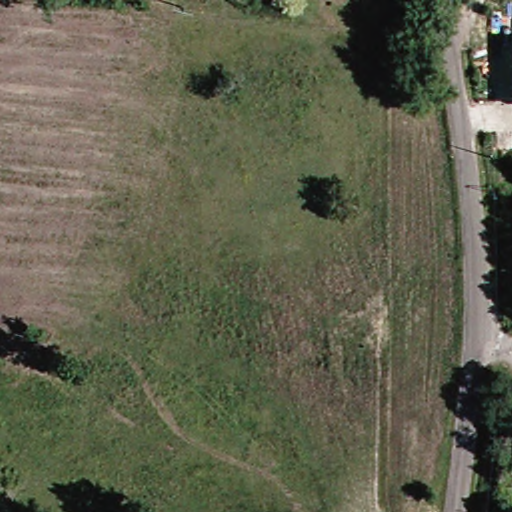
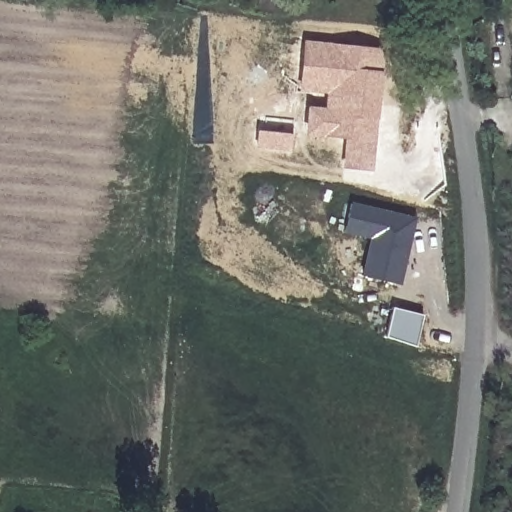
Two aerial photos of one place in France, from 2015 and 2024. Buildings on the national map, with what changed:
new [(342,168),(344,138),(307,135),(308,106),(324,107),(326,95),(299,91),(304,40),(388,49),(384,72),(373,171),(342,168)]
new [(362,275),(369,238),(344,231),(351,201),(417,217),(401,285),(362,275)]
new [(394,307),(424,315),(417,346),(386,336),(394,307)]

